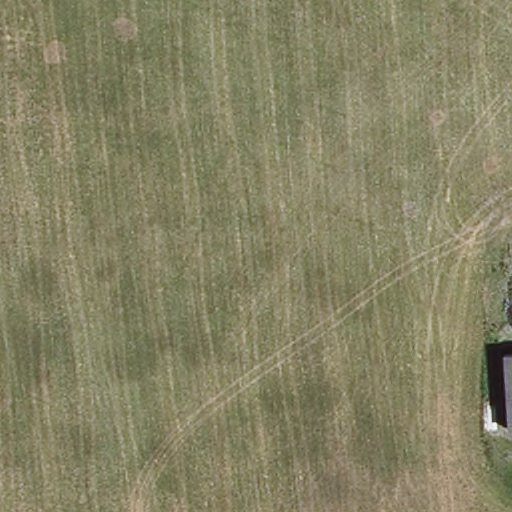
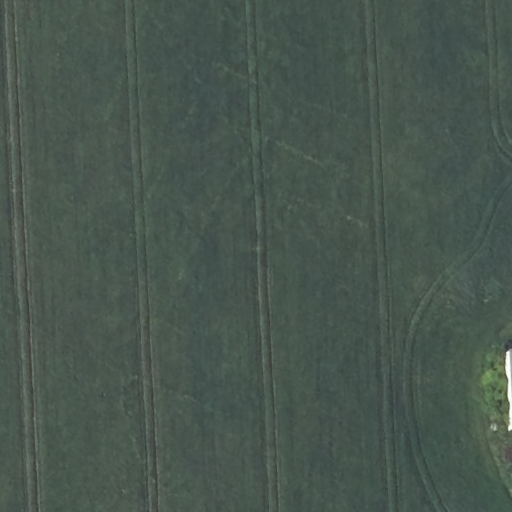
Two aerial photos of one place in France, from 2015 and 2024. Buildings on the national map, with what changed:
unchanged [(512,426),(511,427),(502,354),(512,353),(512,426)]

